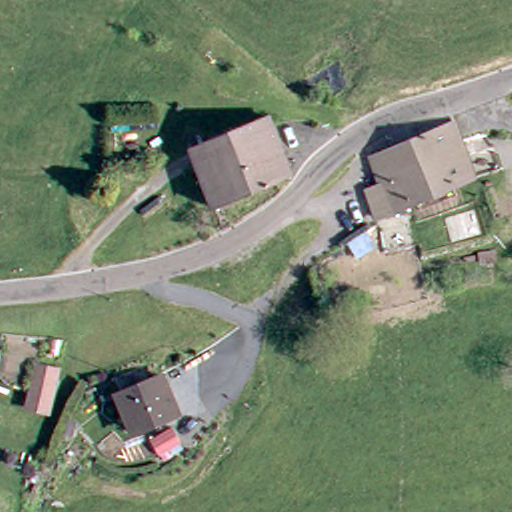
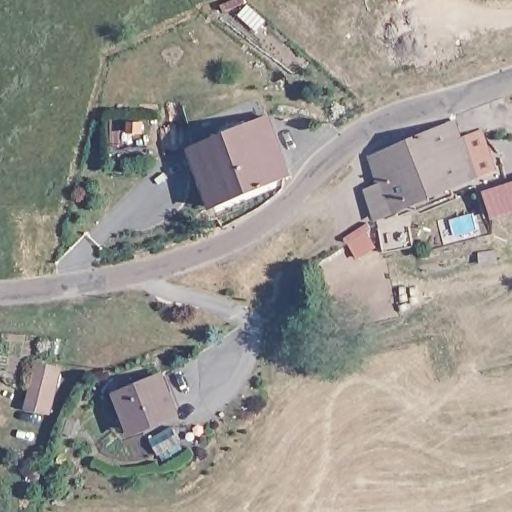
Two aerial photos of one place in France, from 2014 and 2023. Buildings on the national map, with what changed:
new [(393,0),(400,0),(395,2),(393,0)]
unchanged [(293,170),(215,207),(187,148),(267,113),(293,170)]
unchanged [(476,175),(455,182),(426,193),(375,211),(361,181),(378,173),(370,152),(456,120),(476,175)]
new [(512,213),(493,219),(485,190),(512,181),(512,213)]
unchanged [(371,234),(348,244),(341,228),(365,219),(371,234)]
unchanged [(38,360),(58,365),(52,390),(48,405),(28,401),(32,385),(38,360)]
unchanged [(170,411),(126,430),(110,395),(153,377),(170,411)]
unchanged [(152,452),(145,439),(166,427),(175,443),(152,452)]

